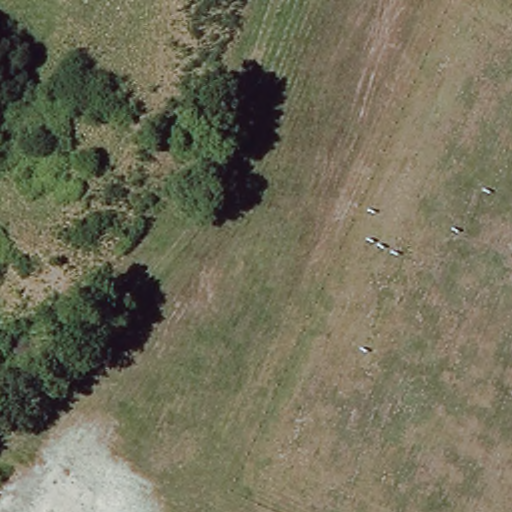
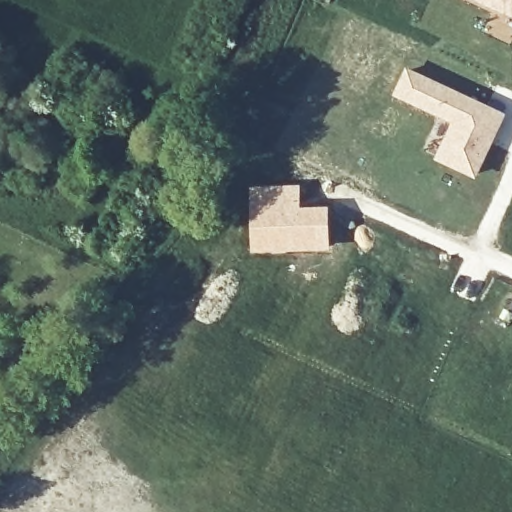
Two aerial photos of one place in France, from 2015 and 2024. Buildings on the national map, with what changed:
new [(477,0),(512,0),(512,16),(477,0)]
new [(406,65),(507,112),(477,179),(434,159),(451,122),(392,95),(406,65)]
new [(300,183),(302,206),(329,205),(330,250),(251,253),(249,185),(300,183)]

